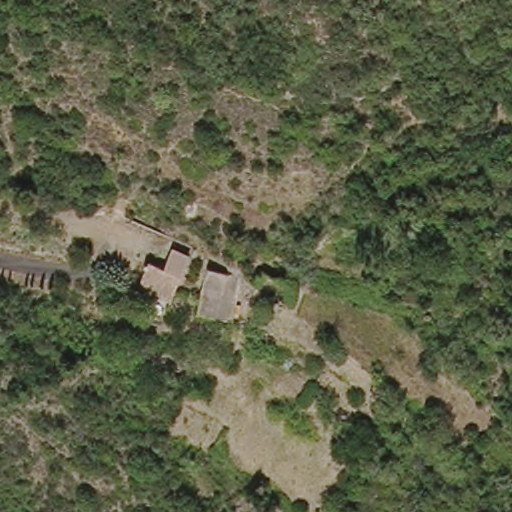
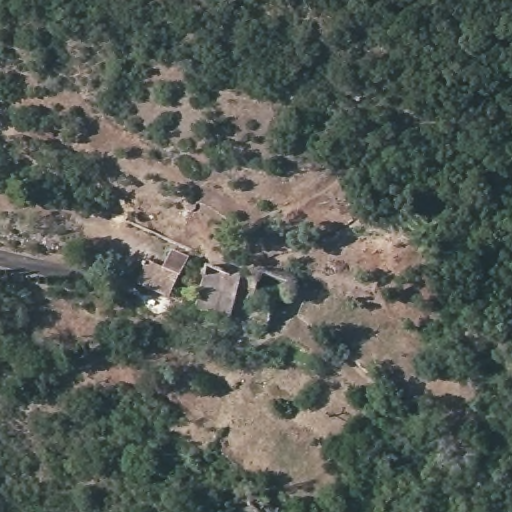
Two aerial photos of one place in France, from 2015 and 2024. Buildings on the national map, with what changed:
unchanged [(144,258),(176,279),(163,300),(129,280),(144,258)]
unchanged [(237,314),(213,310),(215,303),(197,298),(203,274),(223,278),(240,281),(247,283),(279,289),(272,312),(264,310),(261,319),(237,314)]

